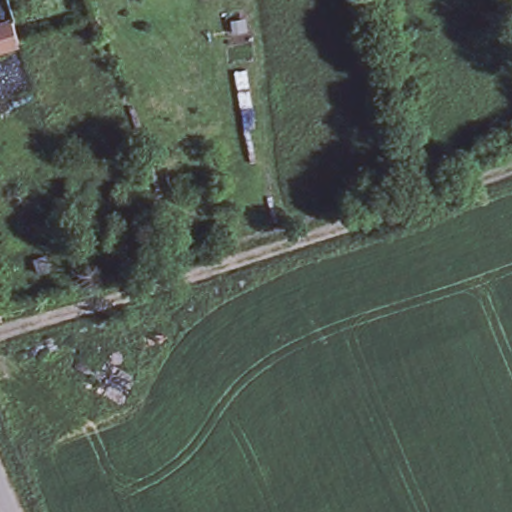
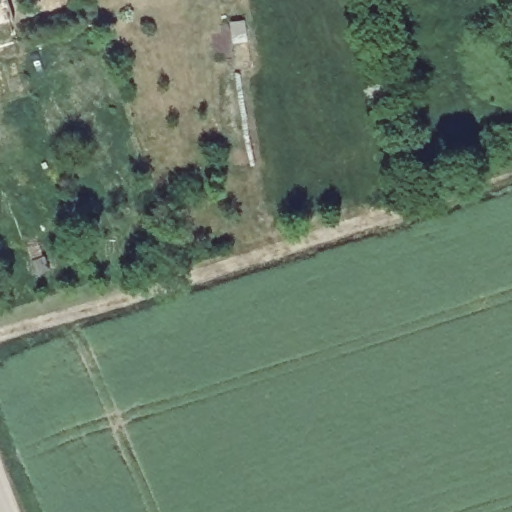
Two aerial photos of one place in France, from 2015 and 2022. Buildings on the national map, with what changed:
unchanged [(14,33),(16,42),(0,47),(0,23),(10,20),(14,33)]
unchanged [(43,258),(48,269),(35,274),(31,262),(43,258)]

